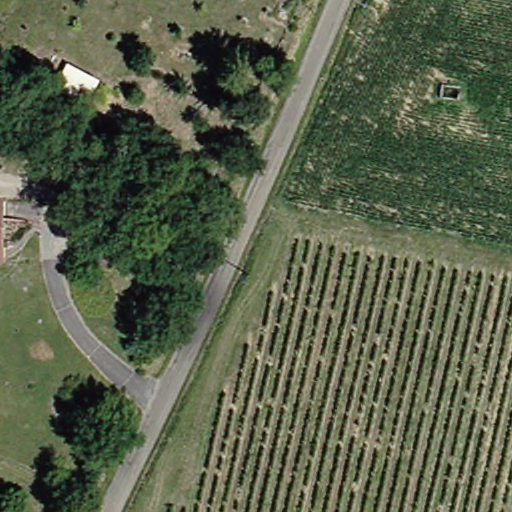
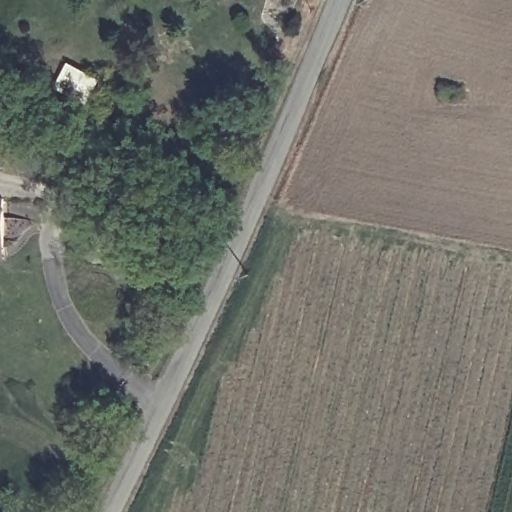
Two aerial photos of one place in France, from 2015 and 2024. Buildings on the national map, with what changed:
unchanged [(12,196),(12,242),(12,255),(0,254),(0,196),(12,196)]

